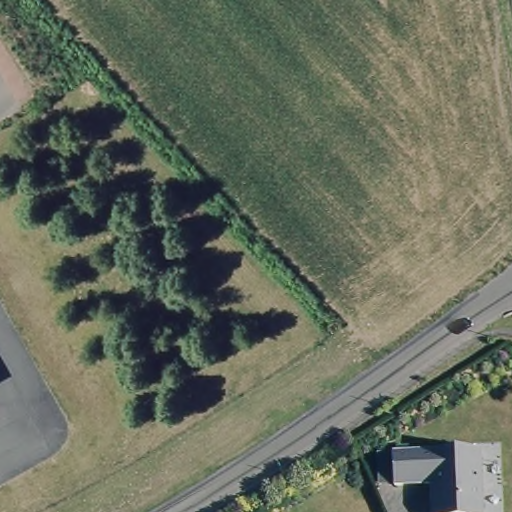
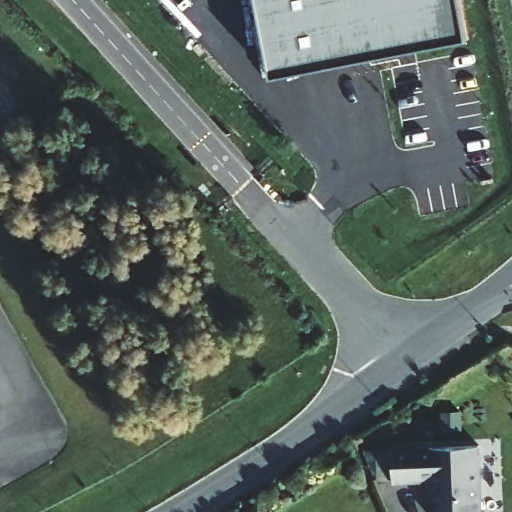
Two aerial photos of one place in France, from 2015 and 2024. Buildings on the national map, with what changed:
new [(466,38),(273,75),(259,0),(459,0),(466,38)]
unchanged [(478,512),(428,512),(427,486),(390,487),(388,455),(475,451),(478,512)]

